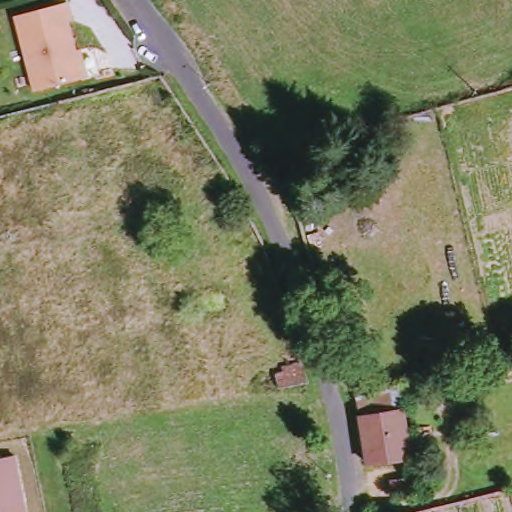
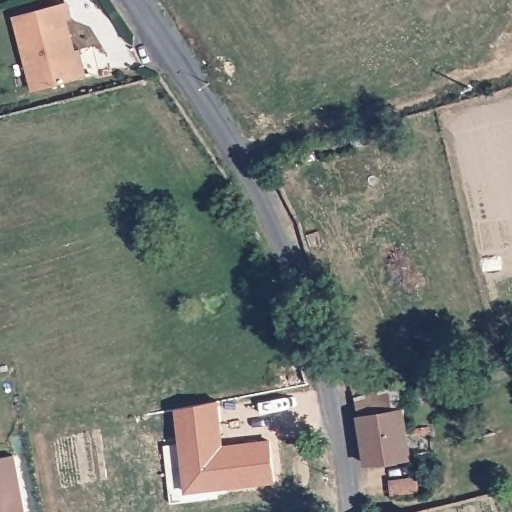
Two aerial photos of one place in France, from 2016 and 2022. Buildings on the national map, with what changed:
unchanged [(90,76),(87,78),(40,90),(20,16),(71,3),(75,19),(70,20),(79,51),(83,50),(90,76)]
unchanged [(288,374),(287,367),(308,360),(323,413),(291,417),(280,374),(288,374)]
unchanged [(402,384),(406,408),(361,416),(355,398),(402,384)]
new [(219,402),(222,446),(269,442),(272,487),(184,495),(173,410),(219,402)]
unchanged [(406,408),(411,460),(367,464),(361,416),(406,408)]
unchanged [(16,458),(27,512),(0,512),(0,461),(16,458)]
unchanged [(417,492),(396,495),(394,481),(415,479),(417,492)]
unchanged [(426,512),(424,512),(426,511),(426,512)]

